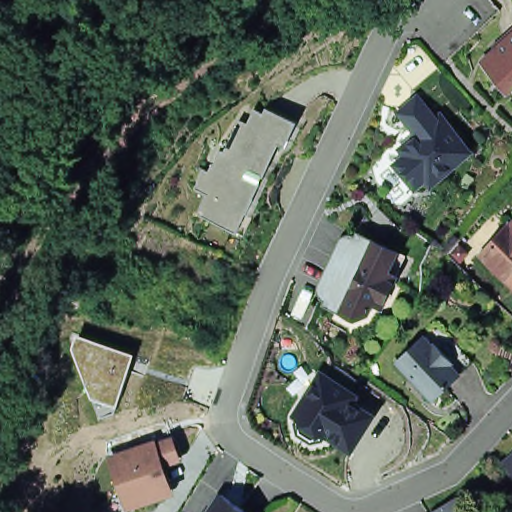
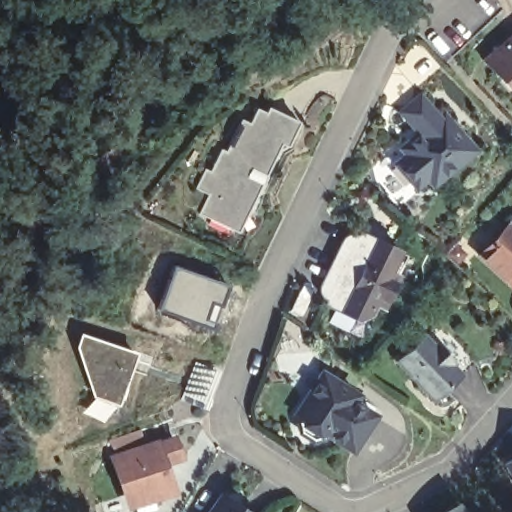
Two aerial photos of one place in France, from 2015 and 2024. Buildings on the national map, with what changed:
unchanged [(489,66),(512,45),(512,91),(489,66)]
unchanged [(420,95),(439,118),(443,115),(474,150),(433,185),(428,178),(417,188),(397,165),(408,156),(403,149),(419,135),(400,112),(420,95)]
unchanged [(231,235),(199,220),(208,200),(196,194),(205,174),(210,177),(221,155),(226,157),(241,125),(249,129),(256,114),(266,118),(268,113),(293,124),(266,182),(252,175),(248,182),(263,188),(255,203),(239,238),(231,235)]
unchanged [(510,227),(512,228),(512,286),(482,258),(510,227)]
unchanged [(399,252),(389,272),(398,276),(383,307),(374,303),(368,315),(358,319),(338,310),(326,304),(334,289),(323,283),(342,244),(353,249),(360,233),(399,252)]
new [(228,284),(215,329),(162,309),(176,266),(228,284)]
unchanged [(119,405),(94,397),(74,346),(80,334),(136,353),(119,405)]
unchanged [(429,343),(439,354),(442,351),(459,368),(456,371),(466,382),(439,406),(403,368),(429,343)]
unchanged [(357,401),(352,408),(374,421),(352,455),(326,439),(323,443),(313,445),(302,438),(299,428),(302,424),(297,420),(323,379),(357,401)]
unchanged [(169,441),(174,457),(155,463),(164,490),(127,502),(113,459),(169,441)]
unchanged [(505,471),(512,466),(512,482),(505,471)]
unchanged [(211,512),(223,495),(249,512),(211,512)]
unchanged [(460,512),(449,512),(457,507),(460,512)]

